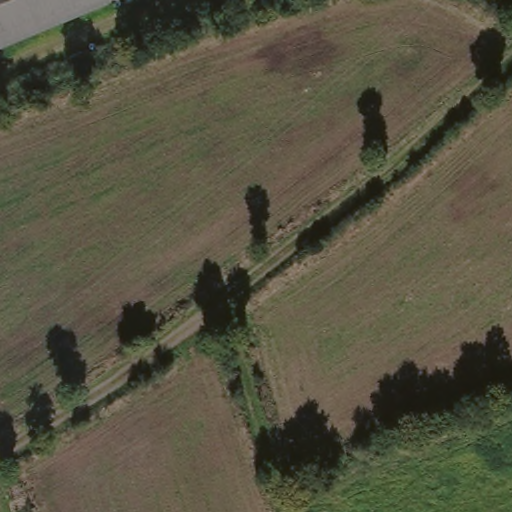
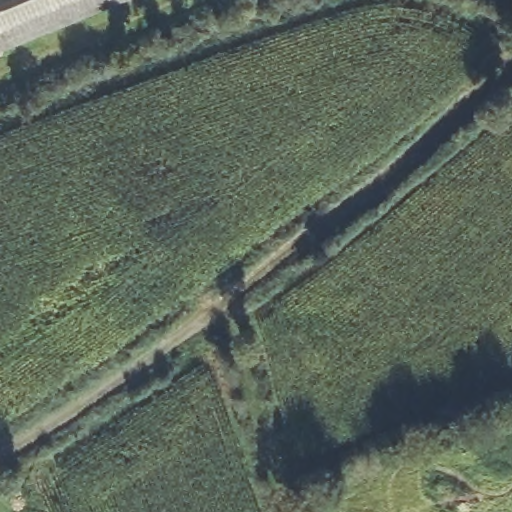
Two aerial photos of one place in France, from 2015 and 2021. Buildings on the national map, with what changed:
unchanged [(0,47),(0,0),(125,0),(0,47)]

